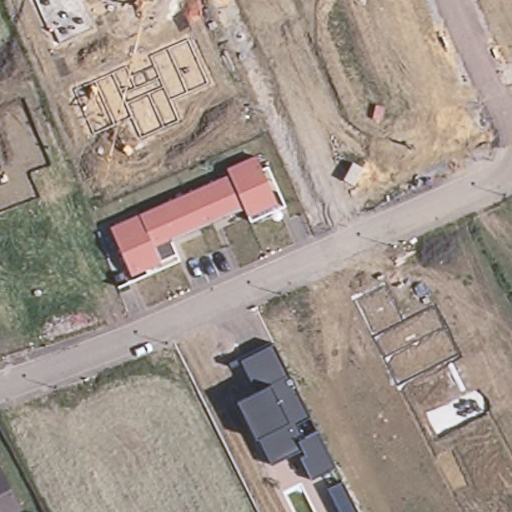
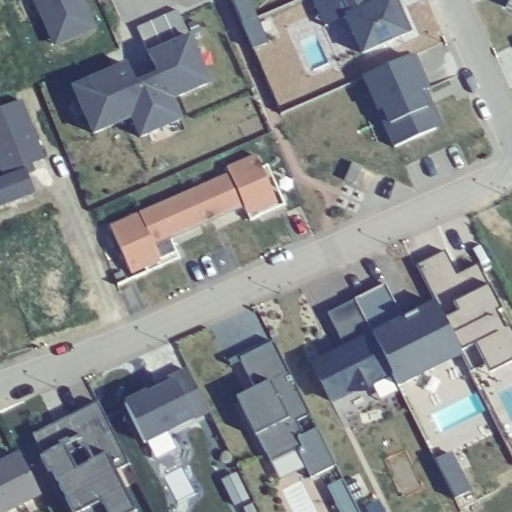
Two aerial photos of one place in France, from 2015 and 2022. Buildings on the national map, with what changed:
new [(85,0),(98,31),(54,48),(32,0),(85,0)]
new [(322,29),(311,0),(395,0),(410,36),(361,58),(346,21),(322,29)]
new [(512,1),(512,11),(509,9),(512,1)]
new [(73,89),(128,68),(136,84),(157,75),(148,54),(136,28),(179,9),(191,36),(211,84),(175,101),(184,122),(138,140),(131,123),(91,139),(73,89)]
new [(364,79),(416,57),(431,91),(422,96),(428,111),(438,111),(444,124),(442,131),(397,151),(364,79)]
new [(24,105),(44,160),(32,164),(36,174),(29,178),(36,198),(0,211),(0,185),(6,183),(0,167),(0,113),(24,105)]
unchanged [(110,227),(139,214),(229,175),(226,169),(256,155),(262,169),(268,167),(285,205),(249,222),(243,209),(171,240),(178,255),(131,277),(110,227)]
new [(341,348),(324,315),(386,287),(402,319),(435,300),(417,264),(444,253),(456,277),(479,265),(491,288),(512,335),(512,362),(489,375),(483,362),(469,370),(463,357),(398,387),(391,374),(379,381),(369,397),(349,397),(329,407),(309,364),(341,348)]
unchanged [(256,390),(240,359),(273,343),(309,416),(296,423),(304,438),(318,431),(335,466),(311,479),(299,457),(303,455),(301,451),(270,465),(256,437),(254,438),(236,401),(256,390)]
new [(131,407),(191,374),(212,415),(150,447),(131,407)]
new [(133,468),(118,476),(137,512),(108,512),(104,507),(92,512),(76,512),(50,461),(44,445),(105,412),(133,468)]
unchanged [(1,469),(20,508),(11,512),(0,512),(0,470),(1,469)]
unchanged [(326,488),(327,488),(343,479),(359,512),(338,512),(326,488)]

